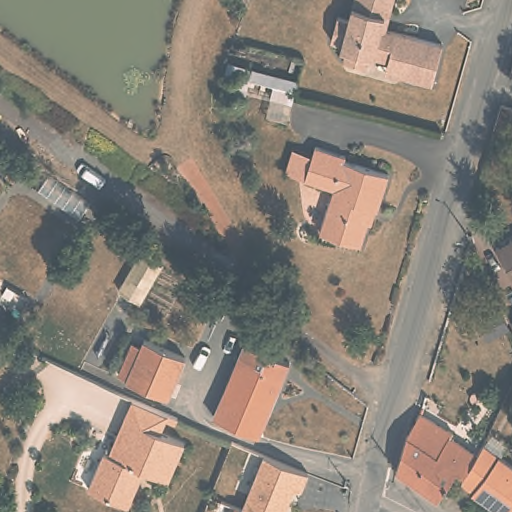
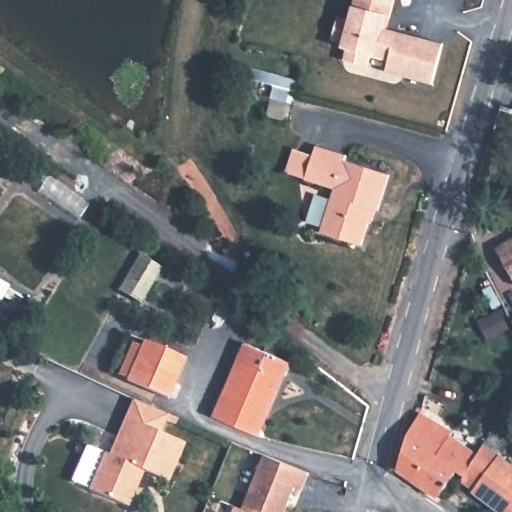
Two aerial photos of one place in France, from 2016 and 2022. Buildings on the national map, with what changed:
unchanged [(389,60),(370,55),(367,67),(344,61),(347,49),(343,43),(332,40),(338,16),(350,20),(355,0),(394,0),(387,30),(443,45),(432,85),(403,77),(386,72),(389,60)]
unchanged [(346,153),(345,157),(385,170),(374,203),(366,201),(362,215),(368,217),(360,241),(320,228),(334,188),(305,178),(286,172),(294,148),(313,154),(316,143),(346,153)]
unchanged [(512,240),(512,275),(498,248),(512,240)]
unchanged [(123,377),(141,335),(183,354),(163,396),(123,377)]
unchanged [(247,344),(292,364),(284,380),(278,378),(254,433),(215,416),(247,344)]
unchanged [(132,401),(144,406),(166,416),(159,433),(183,444),(166,480),(143,469),(126,505),(95,490),(86,486),(102,452),(107,455),(125,417),(132,401)]
unchanged [(451,430),(449,435),(475,453),(461,475),(453,469),(434,496),(393,468),(402,431),(417,411),(451,430)]
unchanged [(512,468),(512,512),(505,512),(501,509),(499,507),(497,512),(470,493),(472,489),(459,480),(461,475),(475,453),(480,443),(512,468)]
unchanged [(297,493),(289,512),(246,512),(267,460),(311,479),(304,496),(297,493)]

